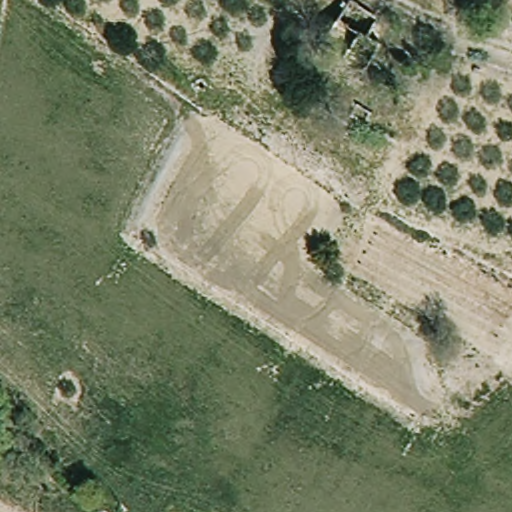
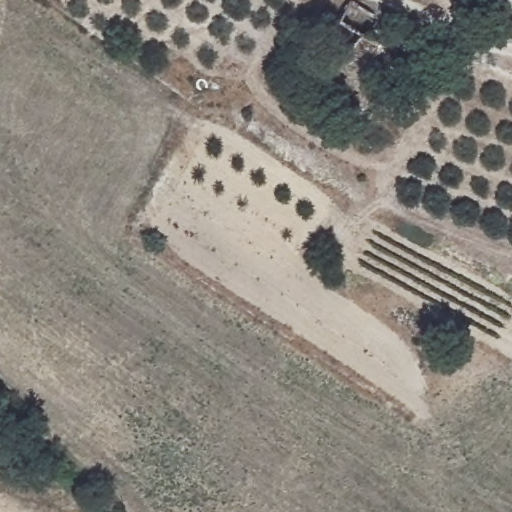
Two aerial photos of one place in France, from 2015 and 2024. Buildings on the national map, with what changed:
[]

